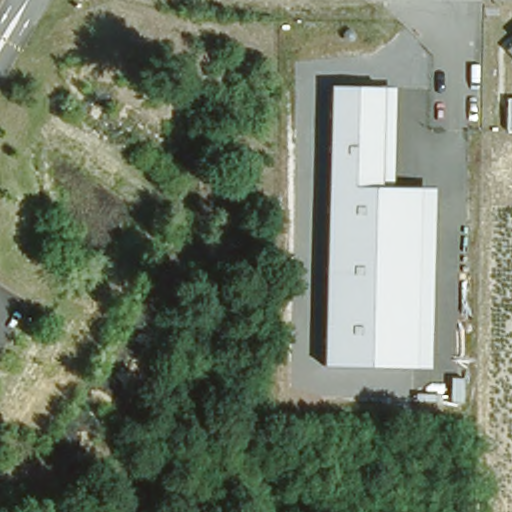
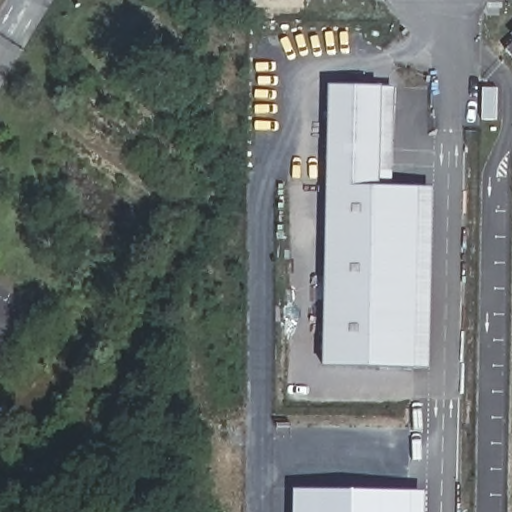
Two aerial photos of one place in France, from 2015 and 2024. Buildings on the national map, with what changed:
unchanged [(512,34),(512,48),(505,41),(512,34)]
unchanged [(382,84),(382,185),(434,187),(431,367),(323,365),(329,82),(382,84)]
new [(426,512),(293,512),(294,490),(427,491),(426,512)]

